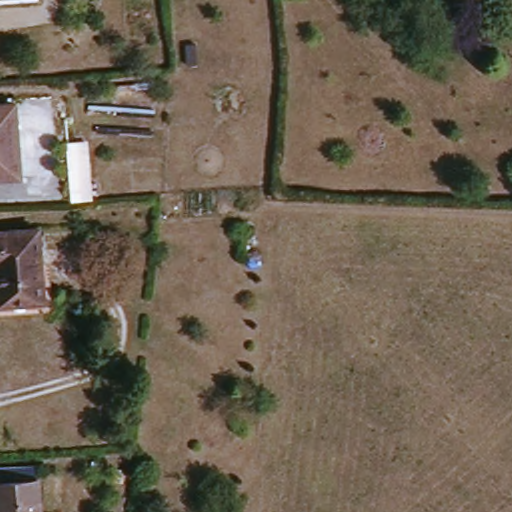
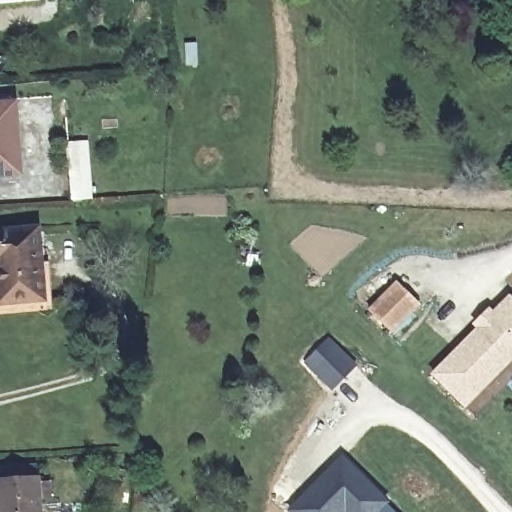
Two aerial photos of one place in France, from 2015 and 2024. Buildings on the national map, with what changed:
unchanged [(25,96),(31,173),(0,175),(0,98),(25,96)]
unchanged [(51,224),(56,298),(10,300),(7,256),(0,257),(0,228),(51,224)]
new [(420,304),(391,334),(368,310),(396,283),(420,304)]
new [(512,363),(466,408),(431,374),(476,328),(471,324),(488,308),(493,312),(510,294),(512,297),(512,363)]
new [(327,339),(356,367),(333,389),(305,362),(327,339)]
new [(345,459),(390,503),(381,512),(293,512),(292,512),(345,459)]
unchanged [(46,479),(49,512),(6,512),(4,483),(46,479)]

